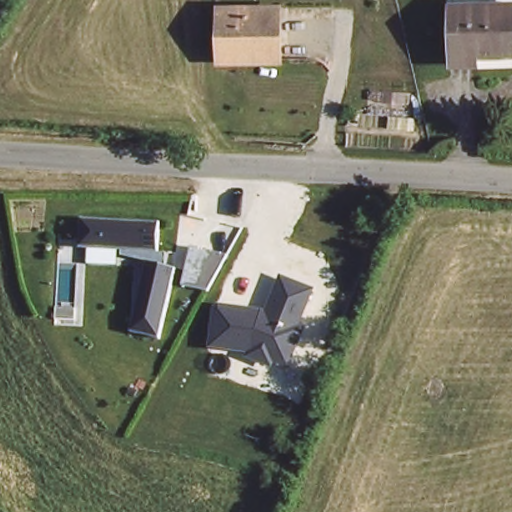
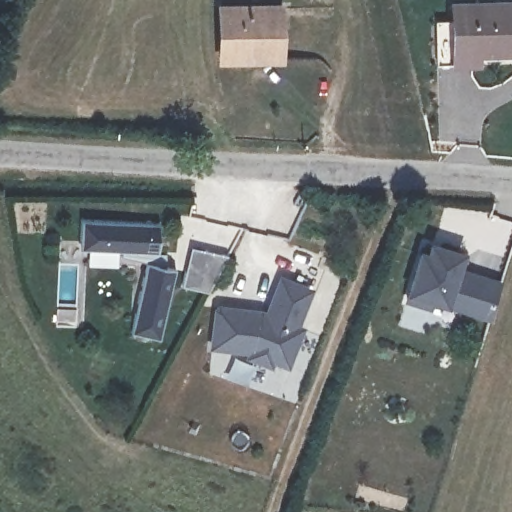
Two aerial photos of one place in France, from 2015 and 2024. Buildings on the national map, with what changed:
unchanged [(512,6),(512,53),(476,51),(474,65),(453,64),(453,4),(512,6)]
unchanged [(287,18),(281,56),(245,51),(244,56),(222,53),(227,8),(287,18)]
unchanged [(127,228),(127,222),(85,218),(88,189),(166,196),(163,226),(181,226),(181,243),(161,312),(133,304),(151,235),(127,228)]
unchanged [(196,218),(209,222),(233,230),(211,266),(187,259),(191,243),(196,218)]
new [(413,249),(420,252),(424,241),(453,251),(447,267),(491,281),(480,314),(422,295),(419,302),(398,295),(413,249)]
unchanged [(213,321),(220,282),(264,289),(264,292),(269,293),(286,257),(314,269),(299,305),(304,307),(288,343),(273,336),(271,342),(251,333),(253,327),(213,321)]

